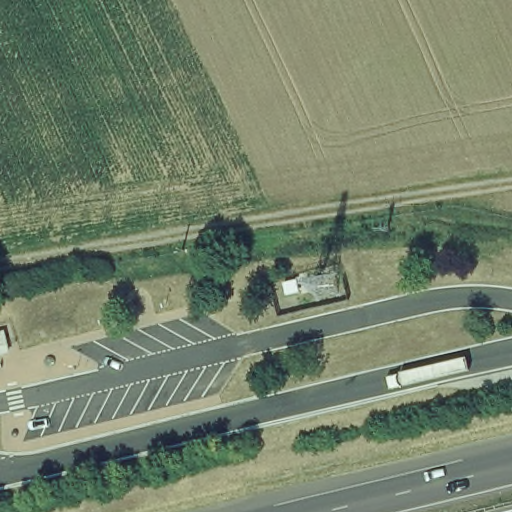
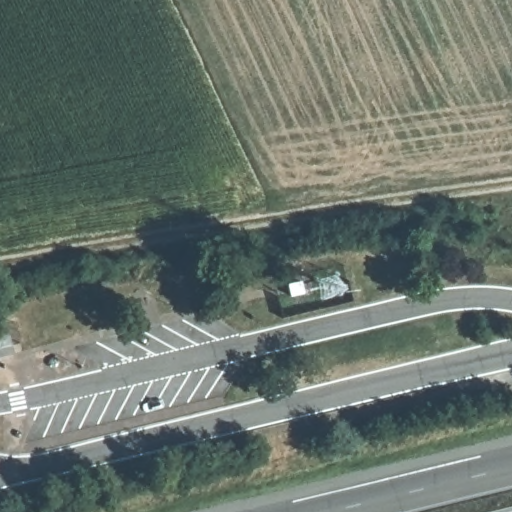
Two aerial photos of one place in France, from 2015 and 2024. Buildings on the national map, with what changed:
unchanged [(15,352),(0,355),(0,331),(9,329),(15,352)]

